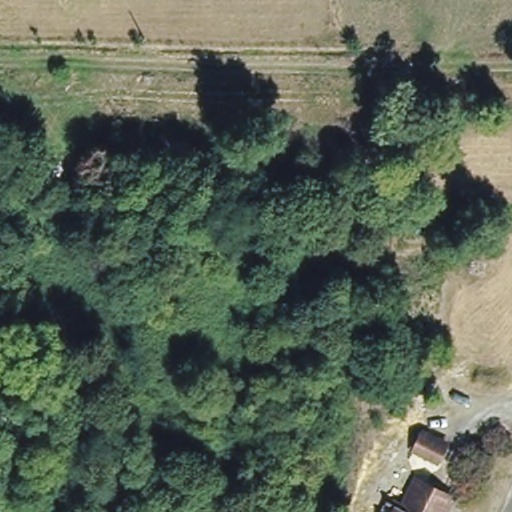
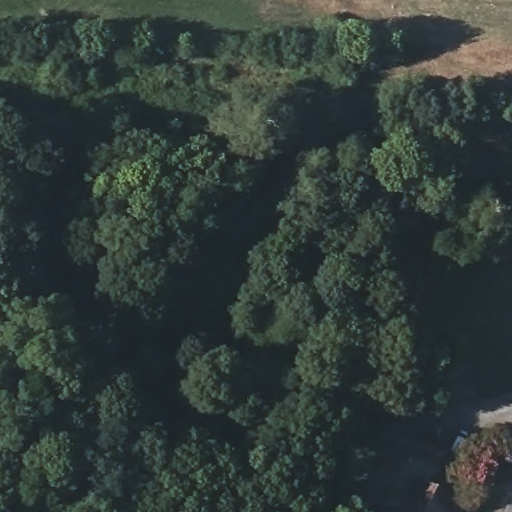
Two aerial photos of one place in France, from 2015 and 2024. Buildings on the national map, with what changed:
unchanged [(420,430),(449,445),(440,463),(412,451),(420,430)]
unchanged [(386,501),(395,505),(408,483),(413,485),(444,503),(451,507),(449,512),(380,512),(386,501)]

